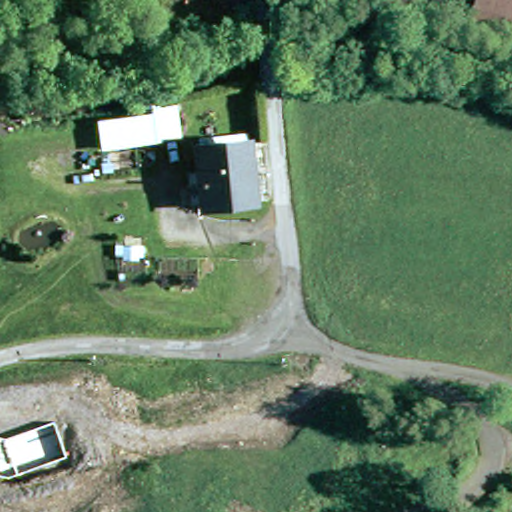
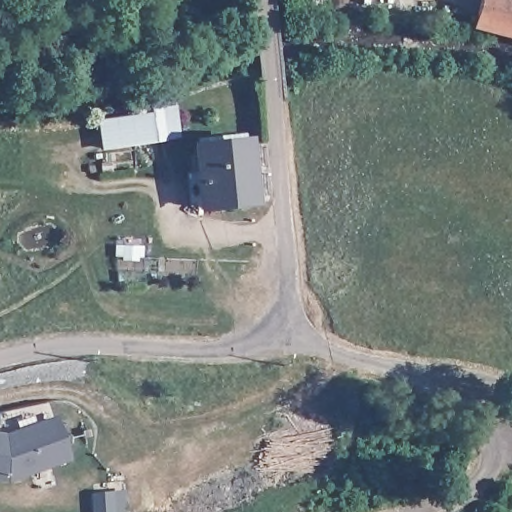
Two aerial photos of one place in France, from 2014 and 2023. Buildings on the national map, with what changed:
unchanged [(474,28),(481,0),(512,0),(512,38),(474,28)]
unchanged [(122,120),(134,119),(143,117),(164,115),(167,141),(145,143),(135,144),(124,145),(102,148),(100,123),(122,120)]
unchanged [(189,179),(200,178),(197,155),(231,152),(230,144),(246,142),(247,151),(253,209),(204,213),(204,209),(192,210),(189,179)]
unchanged [(144,265),(124,267),(123,259),(144,257),(144,265)]
new [(49,404),(56,417),(71,458),(9,480),(0,479),(0,427),(2,415),(49,404)]
new [(115,512),(101,512),(99,495),(114,494),(115,512)]

